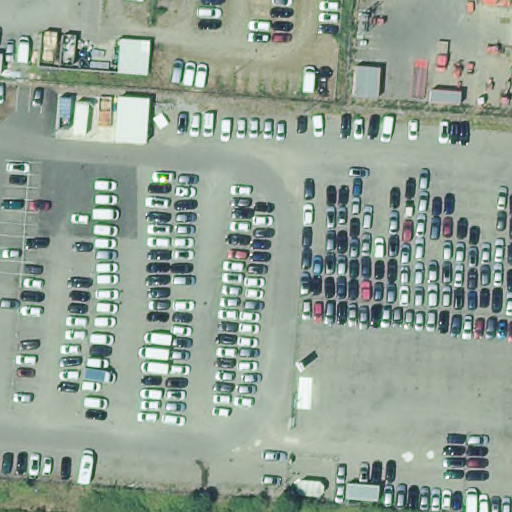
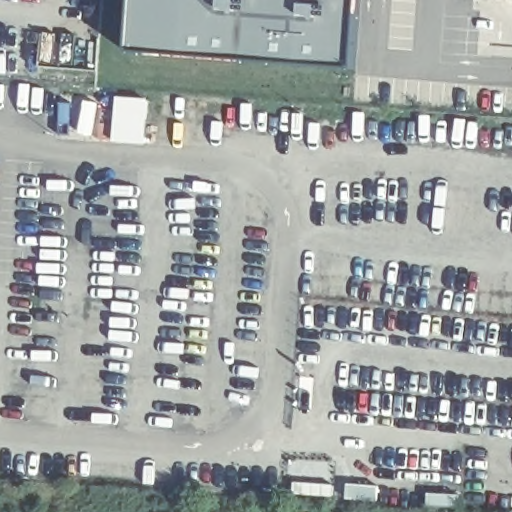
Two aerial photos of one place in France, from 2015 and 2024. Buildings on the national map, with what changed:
new [(354,70),(130,53),(134,0),(359,0),(354,70)]
new [(145,144),(115,143),(117,97),(147,99),(145,144)]

